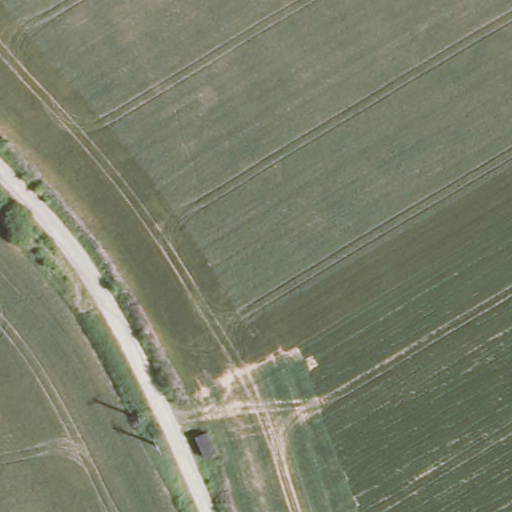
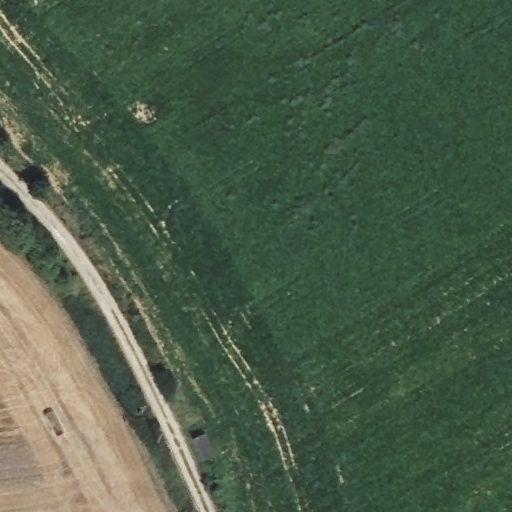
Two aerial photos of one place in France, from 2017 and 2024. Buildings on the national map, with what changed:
unchanged [(204,457),(194,439),(206,433),(216,450),(204,457)]

